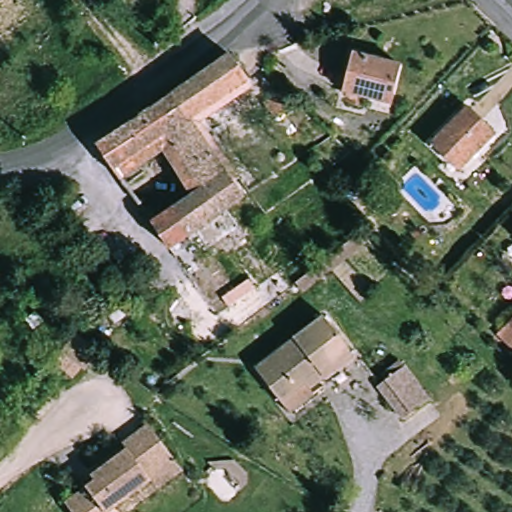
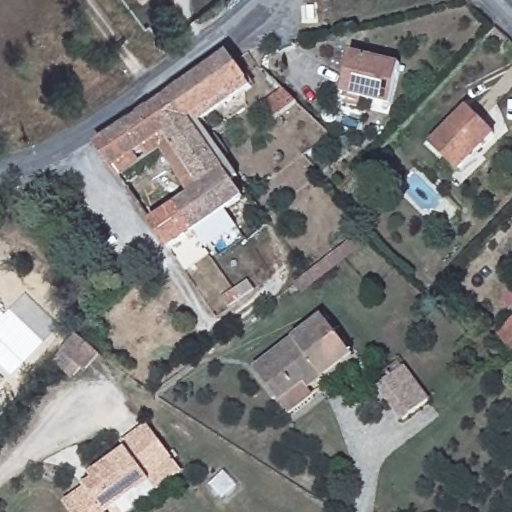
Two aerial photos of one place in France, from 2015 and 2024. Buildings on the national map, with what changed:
unchanged [(399,61),(389,102),(360,95),(358,105),(339,100),(353,50),(399,61)]
unchanged [(194,197),(164,153),(142,169),(148,178),(130,191),(99,146),(229,58),(251,90),(198,126),(229,171),(225,173),(243,199),(169,249),(153,225),(194,197)]
unchanged [(276,123),(265,107),(286,93),(297,108),(276,123)]
unchanged [(446,158),(433,146),(471,106),(498,131),(467,165),(460,172),(446,158)]
unchanged [(363,246),(301,295),(294,285),(353,238),(358,234),(366,244),(363,246)]
new [(0,310),(5,315),(25,294),(59,325),(11,376),(0,365),(0,310)]
unchanged [(497,334),(512,317),(512,349),(497,334)]
unchanged [(289,415),(281,406),(255,373),(324,318),(354,356),(311,390),(314,395),(289,415)]
unchanged [(53,364),(61,352),(74,335),(98,356),(85,373),(80,369),(72,380),(53,364)]
unchanged [(405,423),(378,389),(403,369),(429,404),(405,423)]
unchanged [(64,506),(94,485),(88,476),(125,449),(121,443),(147,425),(182,473),(158,492),(151,483),(111,512),(69,512),(64,506)]

